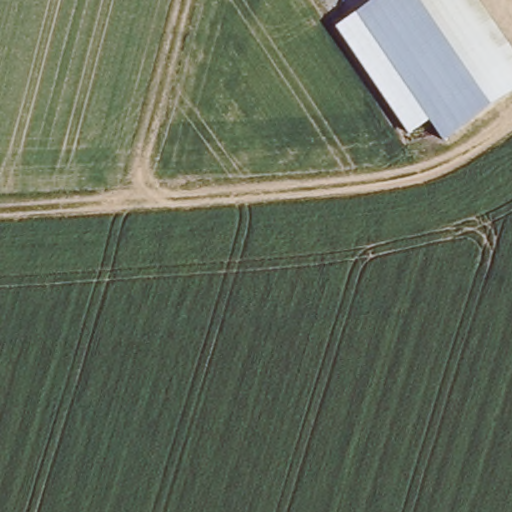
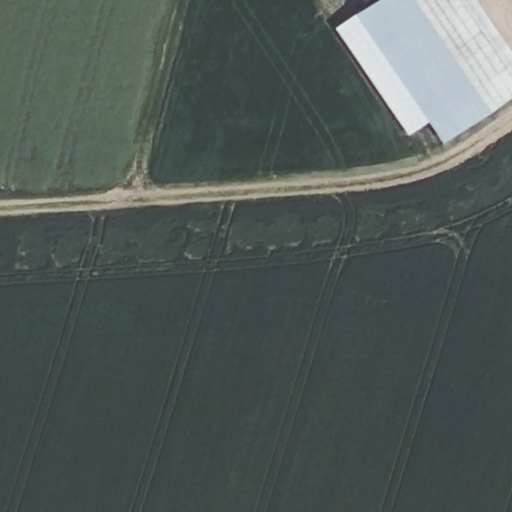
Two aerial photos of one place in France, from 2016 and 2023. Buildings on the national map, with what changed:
unchanged [(512,94),(443,141),(430,122),(409,134),(338,27),(378,0),(477,0),(512,53),(512,94)]

